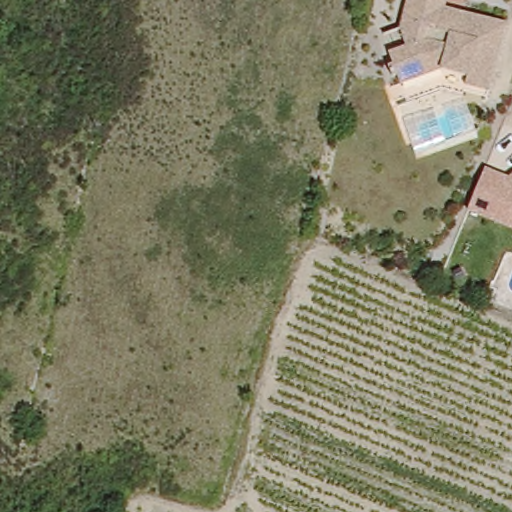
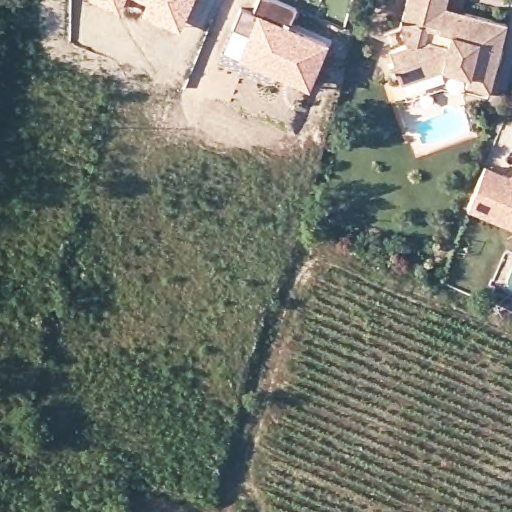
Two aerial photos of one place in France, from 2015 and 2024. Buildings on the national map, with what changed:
new [(89,0),(126,0),(120,14),(89,0)]
new [(143,15),(147,5),(136,0),(193,0),(180,31),(143,15)]
new [(256,0),(276,0),(295,8),(288,25),(329,42),(308,91),(237,61),(254,11),(252,10),(256,0)]
unchanged [(488,88),(473,84),(471,82),(461,72),(413,71),(395,82),(388,57),(413,50),(409,34),(418,0),(443,0),(442,4),(505,22),(488,88)]
unchanged [(466,99),(477,132),(417,155),(404,117),(466,99)]
unchanged [(487,166),(509,174),(512,171),(512,225),(470,212),(487,166)]

